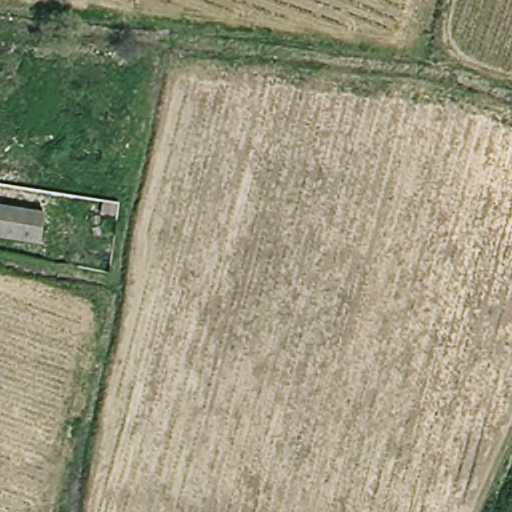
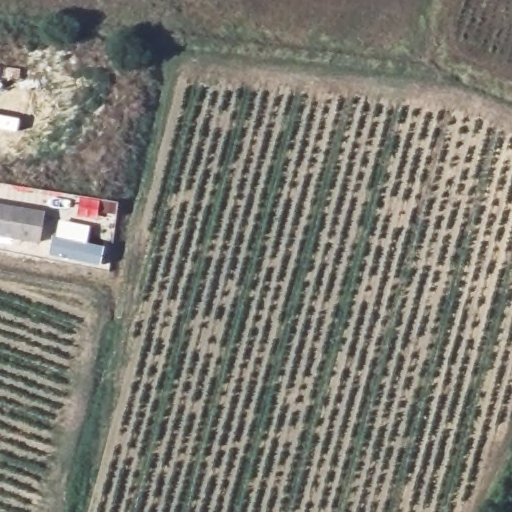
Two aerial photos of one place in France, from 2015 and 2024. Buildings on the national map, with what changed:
unchanged [(40,240),(30,238),(0,233),(0,202),(45,210),(40,240)]
new [(48,254),(60,221),(90,228),(86,245),(104,249),(100,266),(48,254)]

